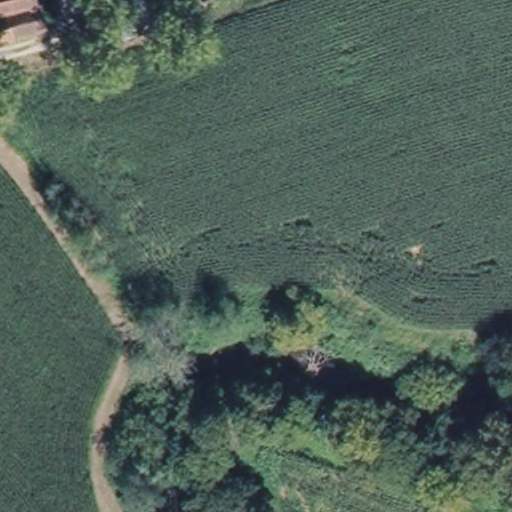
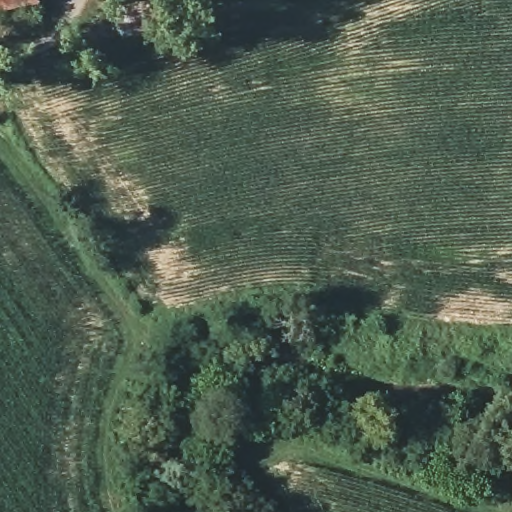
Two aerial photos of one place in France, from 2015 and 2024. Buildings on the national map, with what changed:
unchanged [(35,0),(43,32),(0,44),(0,0),(35,0)]

